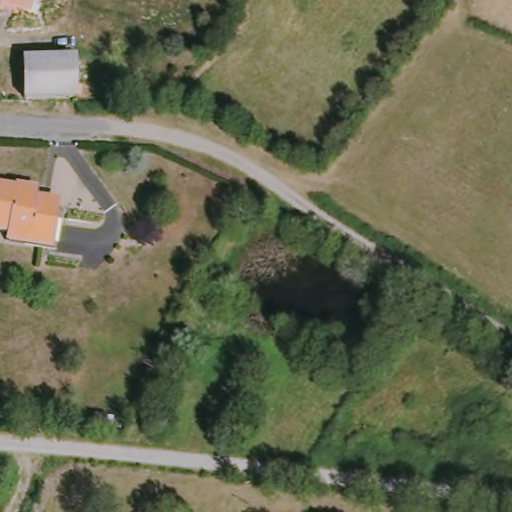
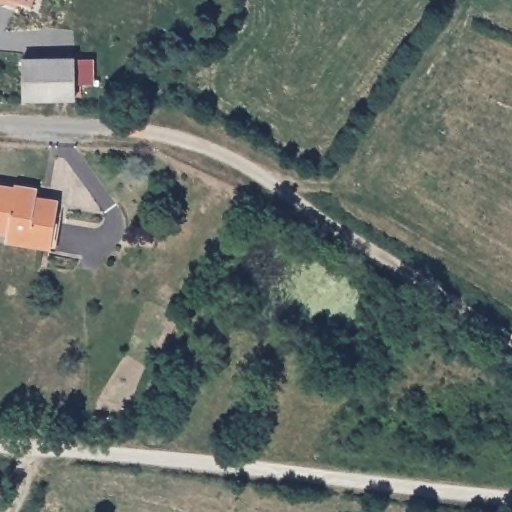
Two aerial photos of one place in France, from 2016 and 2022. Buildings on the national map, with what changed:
unchanged [(0,1),(0,0),(5,0),(5,3),(0,1)]
unchanged [(32,0),(30,6),(12,0),(32,0)]
unchanged [(24,100),(22,60),(73,59),(74,99),(24,100)]
unchanged [(35,201),(57,205),(55,223),(48,222),(44,245),(6,238),(7,233),(0,231),(0,187),(37,193),(35,201)]
unchanged [(95,415),(107,417),(106,427),(93,425),(95,415)]

